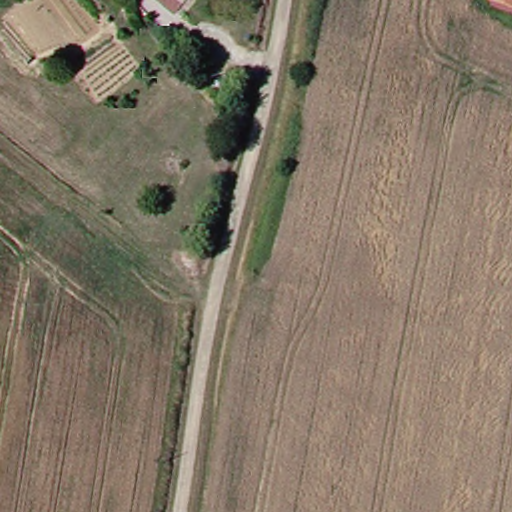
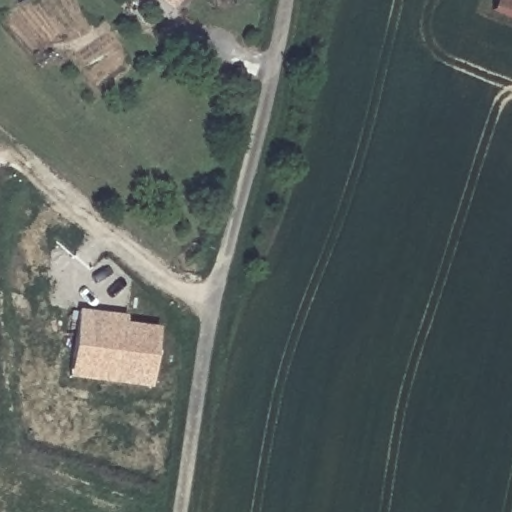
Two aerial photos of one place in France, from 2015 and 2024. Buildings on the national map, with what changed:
unchanged [(149,0),(175,0),(165,12),(149,0)]
unchanged [(490,0),(512,0),(512,22),(485,12),(490,0)]
new [(127,316),(126,323),(160,327),(151,390),(71,379),(81,310),(127,316)]

